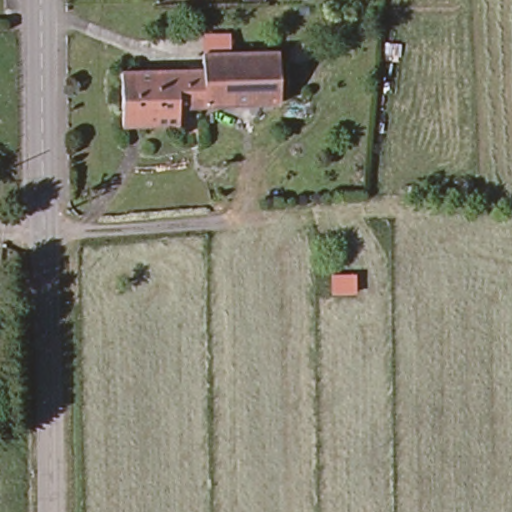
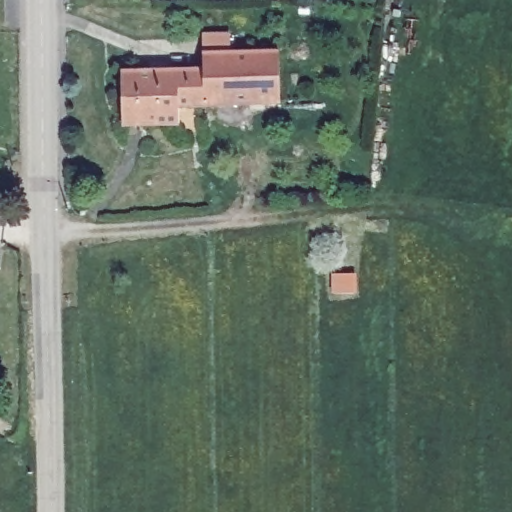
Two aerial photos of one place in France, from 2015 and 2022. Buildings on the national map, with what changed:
unchanged [(123,121),(123,67),(180,66),(200,65),(199,50),(280,48),(282,98),(200,100),(180,101),(180,120),(123,121)]

